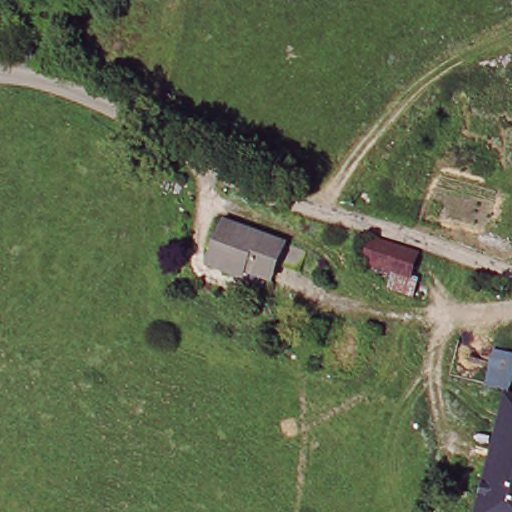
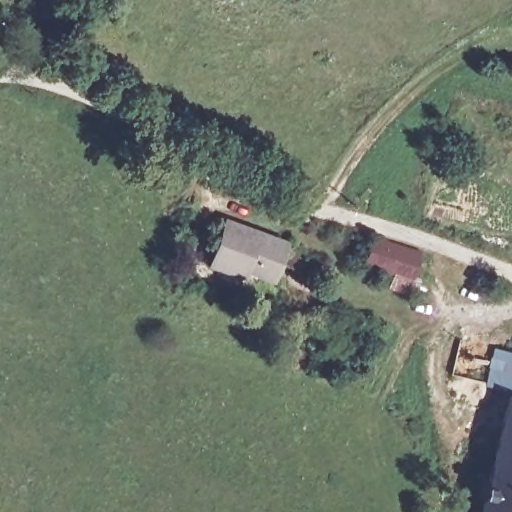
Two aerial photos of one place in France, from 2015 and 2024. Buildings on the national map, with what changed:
unchanged [(287,241),(277,277),(250,269),(247,279),(210,269),(223,223),(287,241)]
unchanged [(374,239),(417,249),(410,274),(424,278),(421,295),(395,289),(398,273),(367,264),(374,239)]
unchanged [(512,512),(477,512),(503,392),(512,394),(512,512)]

